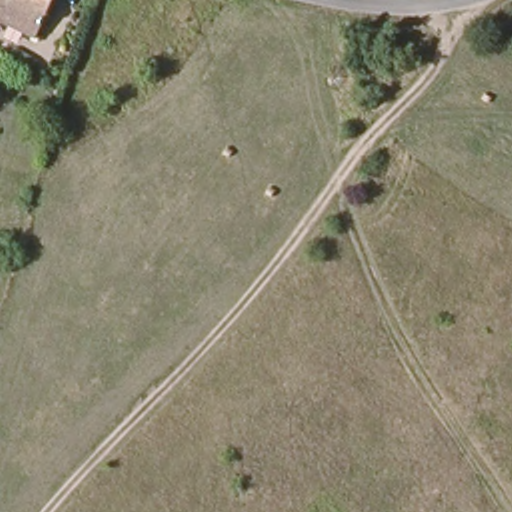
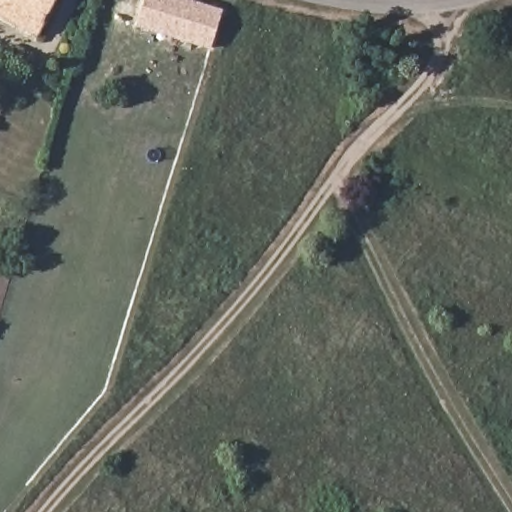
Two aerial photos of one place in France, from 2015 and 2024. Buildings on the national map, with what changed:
unchanged [(53,0),(34,37),(0,20),(0,0),(53,0)]
new [(191,0),(222,10),(210,50),(135,27),(144,0),(191,0)]

